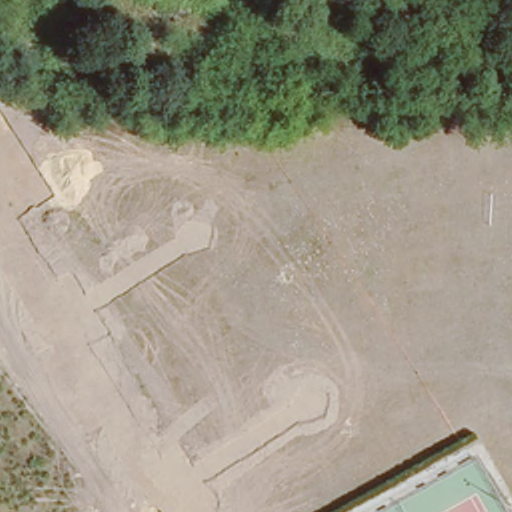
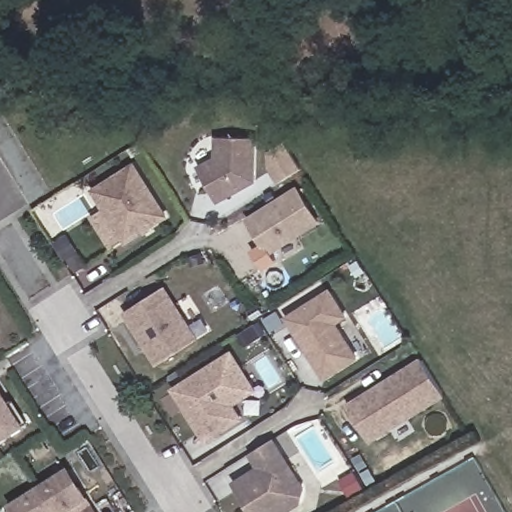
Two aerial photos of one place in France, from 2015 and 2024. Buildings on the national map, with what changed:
new [(215,137),(257,136),(255,182),(218,204),(198,167),(215,157),(215,137)]
new [(268,152),(284,142),(301,170),(278,183),(269,168),(268,152)]
new [(127,245),(91,191),(135,162),(169,216),(127,245)]
new [(269,257),(245,220),(298,186),(322,222),(269,257)]
new [(156,367),(123,313),(166,286),(198,338),(156,367)]
new [(337,324),(358,360),(324,381),(283,317),(331,287),(348,317),(337,324)]
new [(244,420),(206,443),(171,389),(232,350),(257,390),(235,406),(244,420)]
new [(370,443),(346,405),(421,357),(446,396),(370,443)]
new [(0,448),(0,387),(10,405),(15,402),(29,426),(26,432),(0,448)]
new [(301,504),(289,512),(250,512),(233,483),(257,467),(249,454),(275,438),(306,487),(301,504)]
new [(9,509),(70,471),(90,502),(92,507),(95,512),(11,512),(9,509)]

